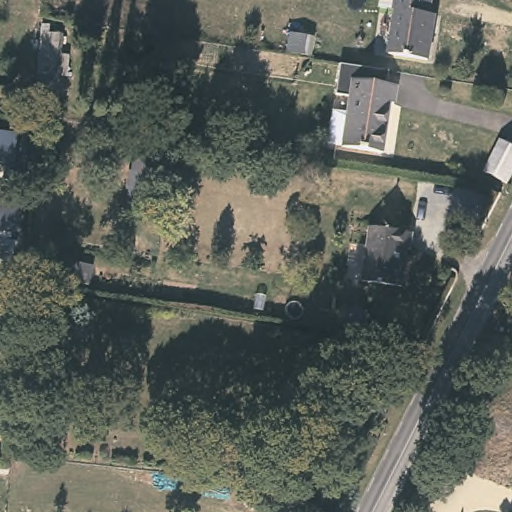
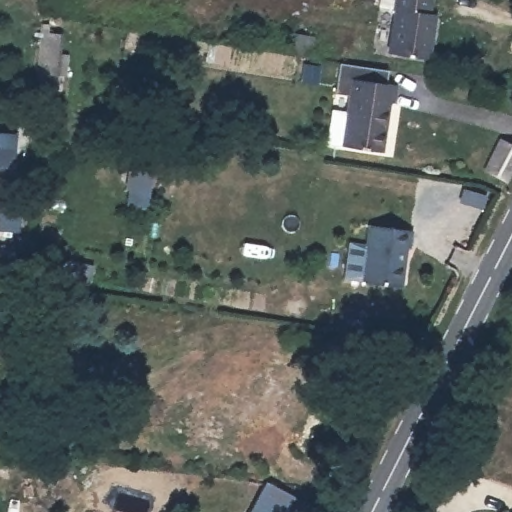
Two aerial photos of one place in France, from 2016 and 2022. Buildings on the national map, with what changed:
unchanged [(436,9),(428,54),(390,49),(397,2),(385,0),(432,0),(430,8),(436,9)]
unchanged [(65,46),(61,86),(41,81),(45,45),(65,46)]
unchanged [(361,74),(403,80),(400,99),(396,99),(388,149),(351,144),(351,143),(336,141),(341,109),(356,111),(361,74)]
unchanged [(16,135),(12,170),(0,168),(0,133),(16,135)]
unchanged [(512,164),(505,179),(486,170),(500,136),(512,142),(512,164)]
unchanged [(160,153),(150,215),(124,212),(133,150),(160,153)]
unchanged [(417,231),(415,245),(413,245),(406,285),(363,278),(371,224),(417,231)]
unchanged [(95,263),(93,284),(43,276),(46,255),(95,263)]
new [(269,481),(294,494),(285,512),(251,512),(269,481)]
unchanged [(324,512),(289,512),(297,498),(324,512)]
unchanged [(512,512),(507,512),(509,508),(512,509),(512,512)]

